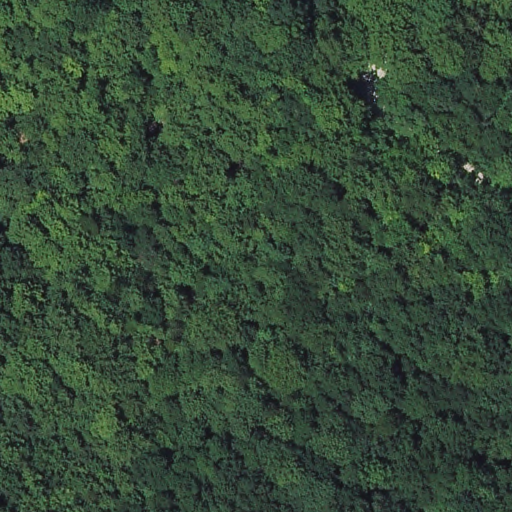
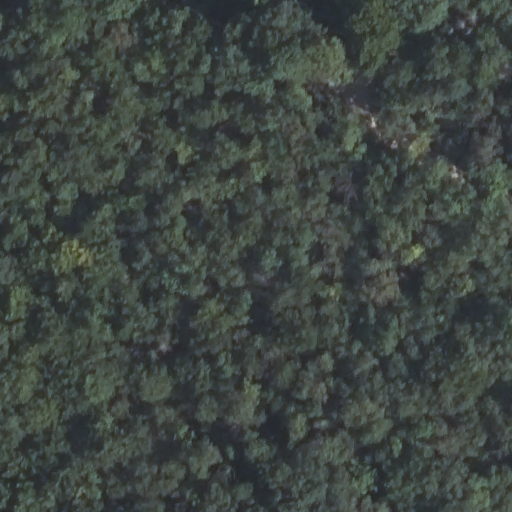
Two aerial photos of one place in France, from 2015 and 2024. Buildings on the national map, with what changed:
[]

